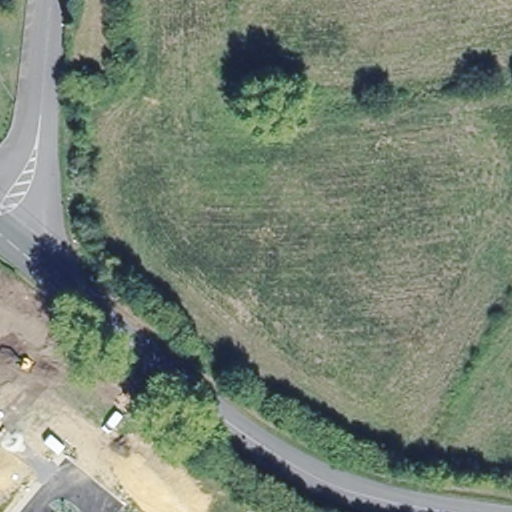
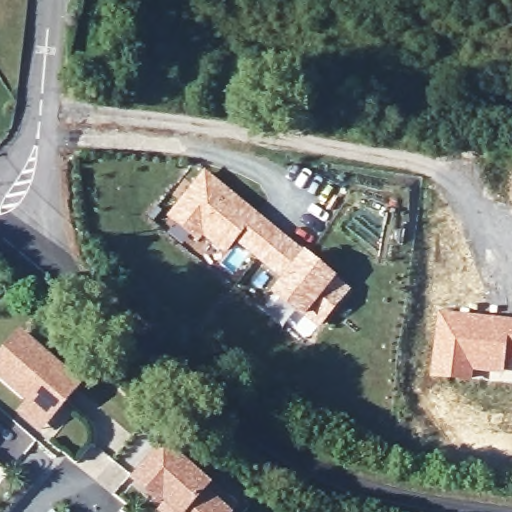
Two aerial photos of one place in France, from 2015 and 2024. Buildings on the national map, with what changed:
new [(304,318),(271,292),(283,277),(237,241),(226,252),(203,235),(199,239),(168,214),(207,169),(259,212),(307,251),(339,277),(353,290),(320,327),(304,318)]
new [(437,311),(512,320),(512,362),(505,361),(504,373),(473,372),(472,382),(429,377),(437,311)]
new [(0,354),(19,332),(78,383),(49,417),(39,428),(19,412),(29,400),(0,376),(0,354)]
new [(158,504),(131,481),(135,477),(161,446),(207,485),(202,491),(226,512),(160,512),(167,504),(162,500),(158,504)]

